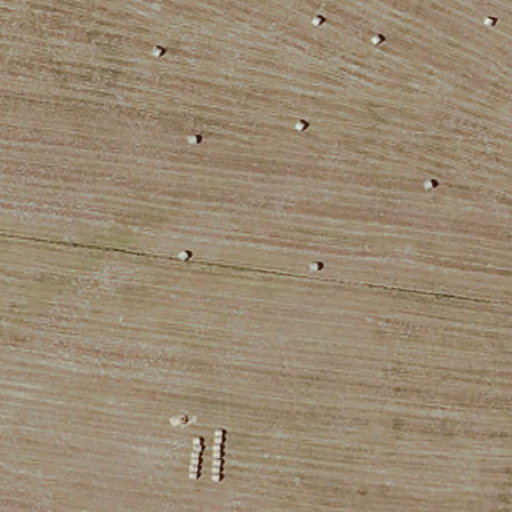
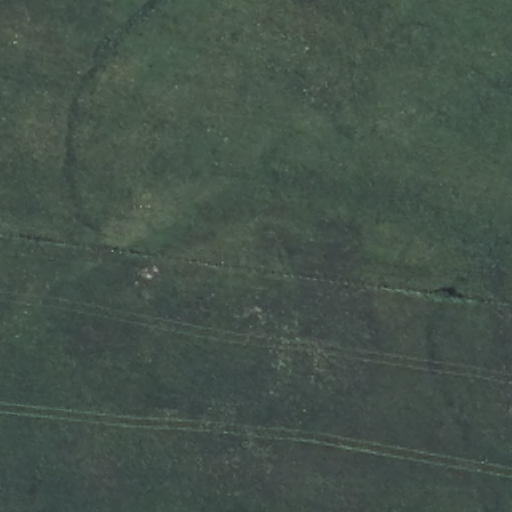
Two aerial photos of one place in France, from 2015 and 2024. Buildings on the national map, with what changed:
[]

